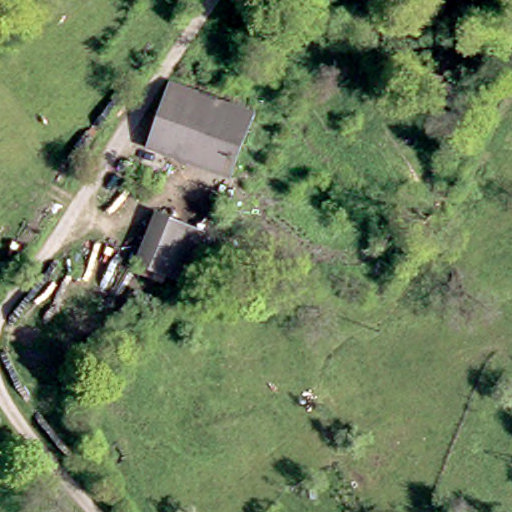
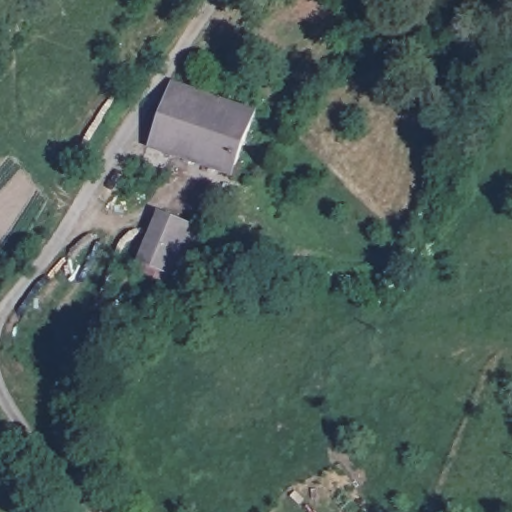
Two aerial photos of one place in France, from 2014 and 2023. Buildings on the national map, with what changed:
unchanged [(145,143),(164,84),(252,107),(234,169),(145,143)]
unchanged [(194,213),(185,244),(205,251),(194,282),(135,261),(153,200),(194,213)]

